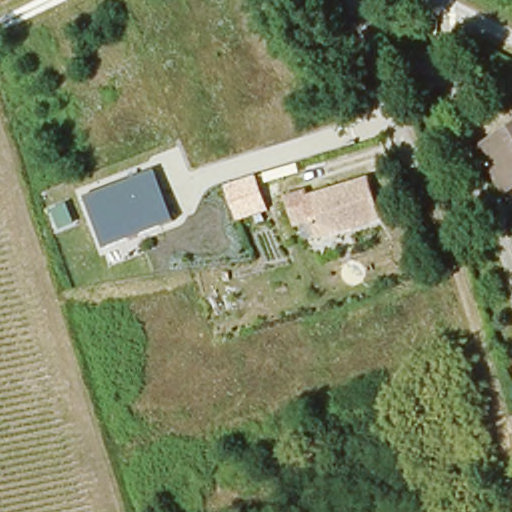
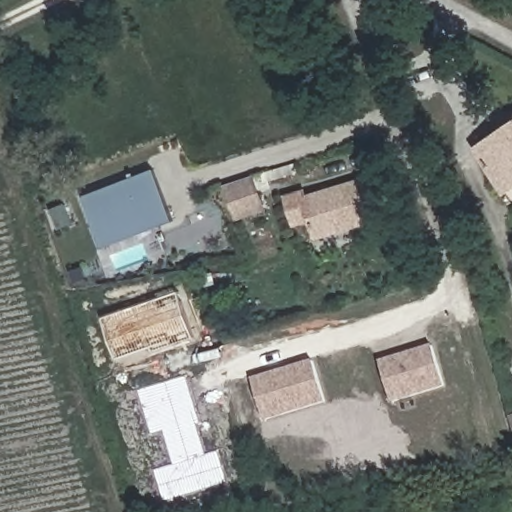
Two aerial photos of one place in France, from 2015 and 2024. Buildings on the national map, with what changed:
unchanged [(507,193),(481,148),(512,130),(512,190),(507,193)]
unchanged [(102,246),(84,194),(154,167),(175,219),(102,246)]
unchanged [(270,210),(236,221),(223,186),(257,176),(270,210)]
unchanged [(382,216),(341,232),(326,194),(330,194),(337,191),(366,179),(382,216)]
unchanged [(307,202),(326,194),(341,232),(322,239),(313,222),(301,227),(300,228),(289,202),(291,202),(305,196),(307,202)]
new [(155,353),(152,347),(117,359),(103,317),(180,291),(197,340),(155,353)]
new [(434,347),(447,387),(395,402),(382,362),(434,347)]
new [(261,388),(258,379),(315,362),(327,403),(273,420),(270,409),(263,411),(257,390),(261,388)]
new [(155,470),(172,465),(163,432),(151,436),(138,390),(185,376),(200,422),(197,423),(205,455),(217,451),(227,483),(165,501),(155,470)]

